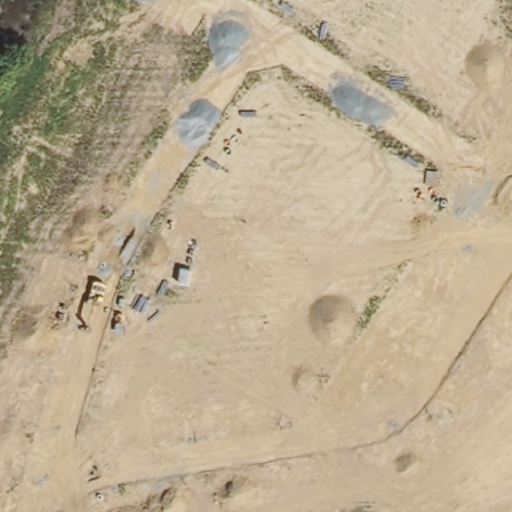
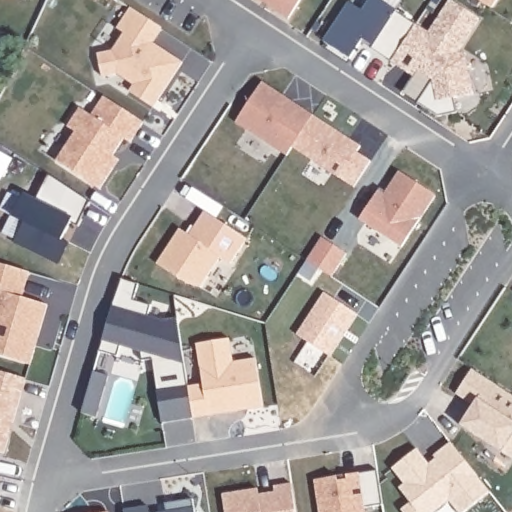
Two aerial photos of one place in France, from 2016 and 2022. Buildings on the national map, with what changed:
new [(256,0),(301,0),(287,20),(256,0)]
new [(321,43),(347,4),(360,12),(369,0),(375,0),(395,13),(395,14),(414,27),(390,64),(370,51),(359,44),(348,61),(321,43)]
new [(471,0),(496,0),(488,11),(471,0)]
new [(390,64),(414,27),(415,26),(427,35),(448,2),(478,21),(456,54),(451,61),(466,72),(471,97),(452,101),(455,115),(436,119),(415,105),(400,95),(411,78),(390,64)]
new [(144,104),(128,94),(132,87),(115,76),(101,79),(95,56),(110,53),(122,35),(115,30),(129,9),(161,31),(151,45),(181,65),(156,103),(151,110),(144,104)]
new [(284,96),(300,107),(313,116),(293,147),(287,156),(236,122),(262,82),(284,96)]
new [(111,170),(97,191),(55,163),(74,133),(66,128),(79,109),(90,117),(102,98),(142,124),(129,144),(122,140),(111,157),(117,162),(111,170)]
new [(313,116),(361,147),(340,178),(293,147),(313,116)]
new [(380,190),(386,194),(400,174),(436,198),(402,249),(360,221),(378,193),(380,190)]
new [(22,196),(35,202),(47,175),(89,203),(76,227),(70,224),(61,241),(68,245),(57,266),(12,244),(22,224),(11,218),(22,196)]
new [(182,232),(191,238),(207,214),(249,242),(232,267),(222,260),(202,290),(187,285),(159,267),(182,232)]
new [(323,239),(348,255),(333,278),(308,262),(323,239)]
new [(0,357),(0,264),(28,272),(20,298),(46,305),(36,337),(34,346),(29,365),(0,357)]
new [(325,294),(358,316),(330,358),(297,336),(325,294)]
new [(210,417),(195,419),(190,388),(205,386),(198,345),(231,340),(235,363),(257,360),(265,409),(250,411),(240,412),(210,417)]
new [(175,370),(177,390),(159,393),(155,372),(175,370)]
new [(460,395),(475,370),(512,394),(512,458),(470,431),(464,426),(477,406),(460,395)]
new [(0,453),(0,372),(25,379),(11,423),(6,438),(2,453),(0,453)]
new [(95,373),(110,377),(98,419),(83,414),(95,373)]
new [(432,465),(440,460),(437,457),(454,443),(493,493),(470,512),(461,512),(453,501),(440,512),(406,512),(405,511),(414,503),(402,489),(408,485),(396,469),(420,450),(432,465)]
new [(336,481),(337,485),(346,484),(346,479),(377,475),(382,509),(367,512),(318,512),(314,484),(336,481)]
new [(273,490),(291,488),(295,512),(224,512),(222,498),(257,493),(273,490)]
new [(165,507),(194,503),(195,512),(166,512),(165,507)]
new [(150,509),(150,512),(134,512),(150,509)]

